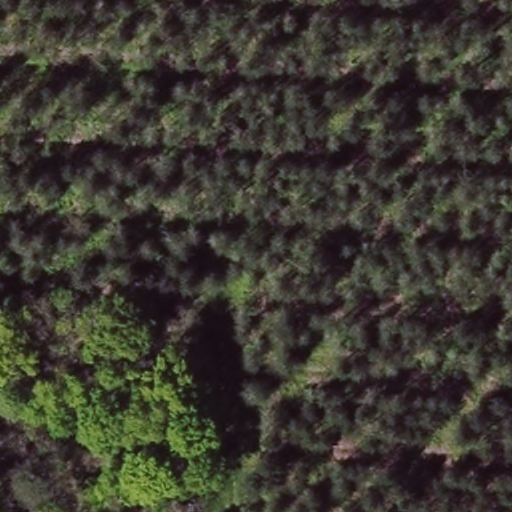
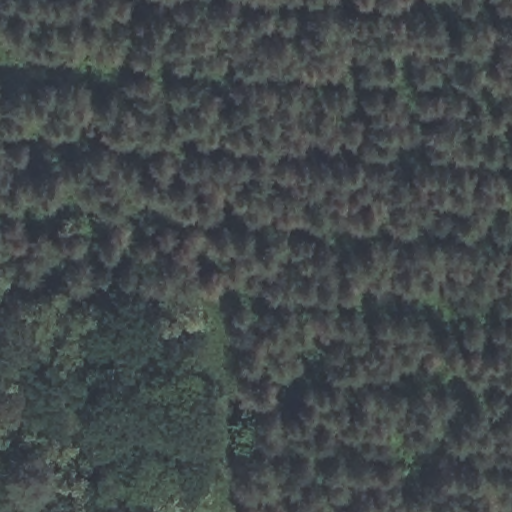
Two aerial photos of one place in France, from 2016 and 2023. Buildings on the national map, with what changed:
unchanged [(166,500),(191,501),(192,512),(165,512),(166,500)]

